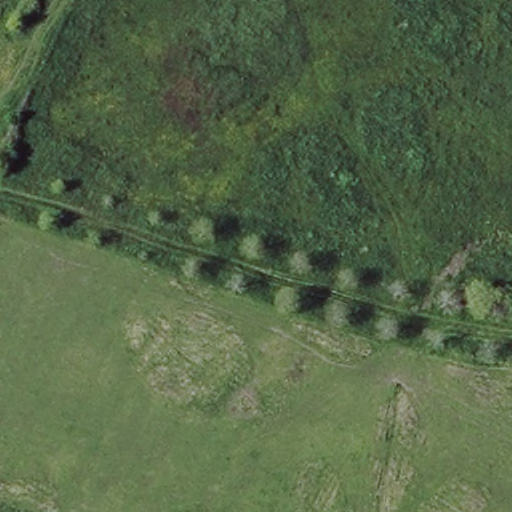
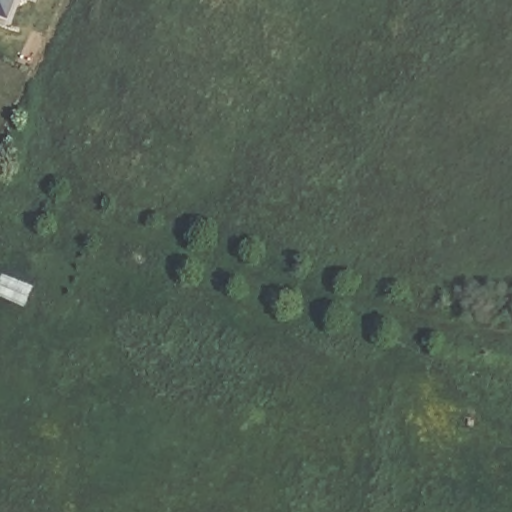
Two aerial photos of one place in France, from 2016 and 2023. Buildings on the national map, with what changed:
new [(0,23),(0,0),(15,0),(5,25),(0,23)]

